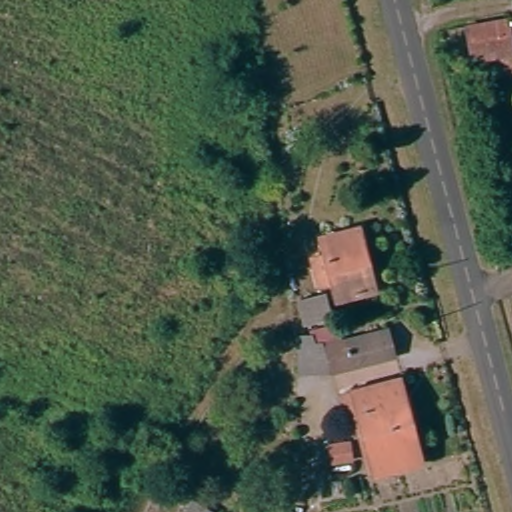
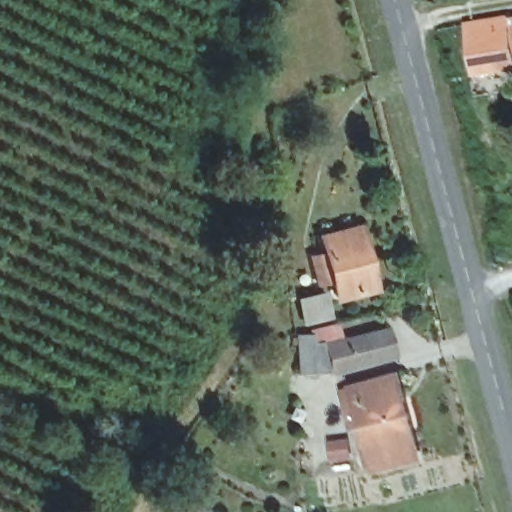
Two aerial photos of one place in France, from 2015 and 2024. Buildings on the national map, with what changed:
unchanged [(470,29),(512,24),(512,72),(476,74),(470,29)]
unchanged [(375,291),(335,300),(330,281),(315,285),(307,250),(320,247),(316,229),(359,215),(375,291)]
unchanged [(301,330),(295,294),(322,292),(328,324),(335,323),(338,335),(341,347),(325,352),(329,369),(294,373),(289,332),(301,330)]
unchanged [(394,354),(329,369),(325,352),(341,347),(338,335),(386,324),(394,354)]
unchanged [(421,460),(366,474),(345,386),(398,373),(421,460)]
unchanged [(335,438),(348,436),(351,459),(337,460),(335,438)]

